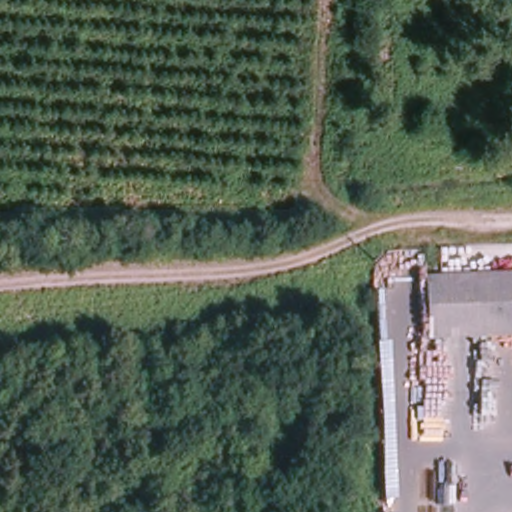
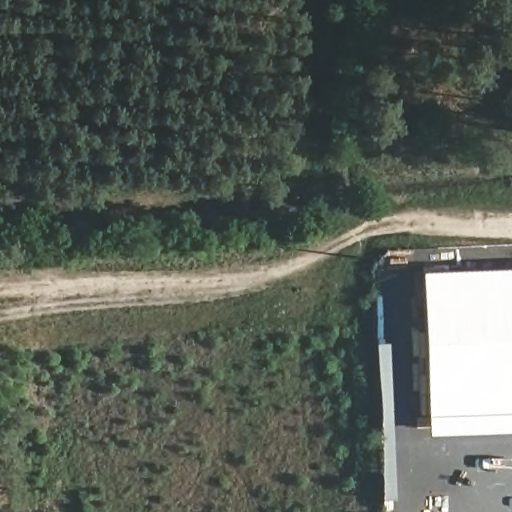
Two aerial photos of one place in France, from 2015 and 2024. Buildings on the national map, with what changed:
new [(427,434),(422,271),(512,267),(512,433),(427,434)]
demolished [(433,333),(433,270),(507,271),(511,333),(433,333)]
demolished [(507,271),(512,271),(512,333),(511,333),(507,271)]
new [(382,339),(389,503),(379,504),(372,340),(382,339)]

